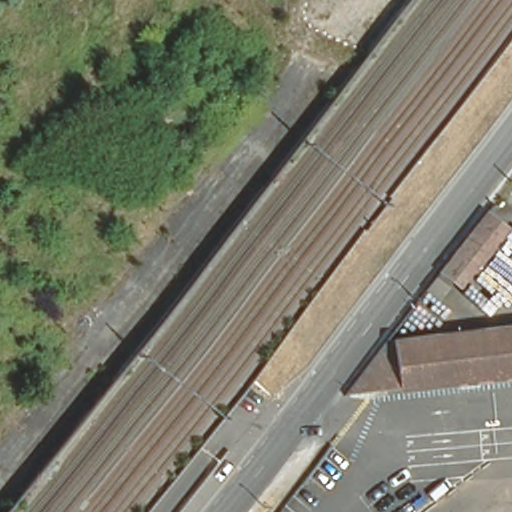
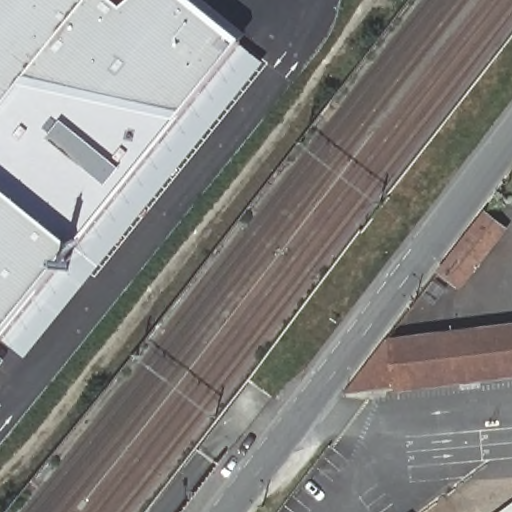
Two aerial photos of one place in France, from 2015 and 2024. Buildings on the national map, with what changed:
new [(0,344),(0,0),(186,0),(227,32),(262,64),(22,360),(0,344)]
unchanged [(442,272),(445,267),(485,215),(505,230),(465,283),(465,282),(461,287),(442,272)]
unchanged [(388,340),(512,327),(512,374),(341,394),(340,394),(382,341),(388,341),(388,340)]

